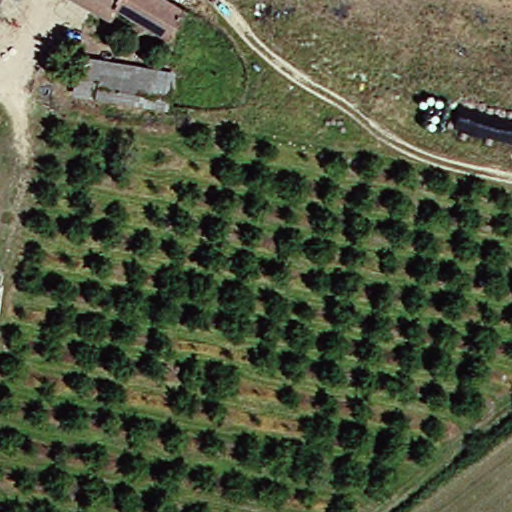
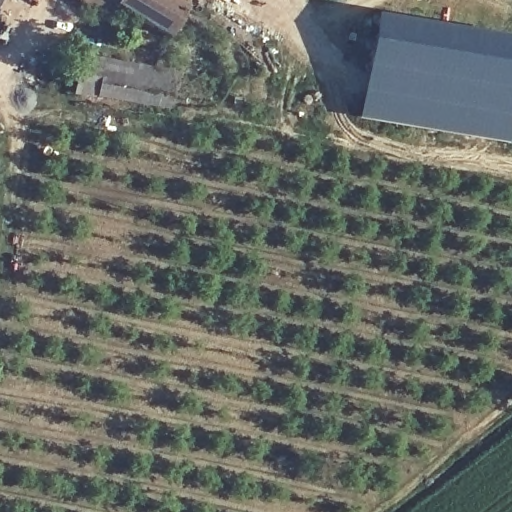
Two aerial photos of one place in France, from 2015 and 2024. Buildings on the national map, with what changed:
unchanged [(3,0),(0,6),(0,0),(3,0)]
unchanged [(73,0),(171,0),(189,10),(171,40),(119,11),(111,25),(73,1),(73,0)]
new [(512,40),(512,126),(508,146),(356,121),(373,18),(512,40)]
unchanged [(99,100),(78,95),(82,65),(103,66),(151,74),(173,77),(171,94),(169,109),(99,100)]

